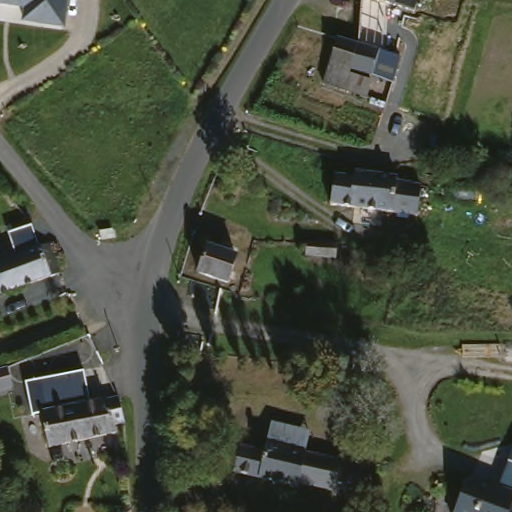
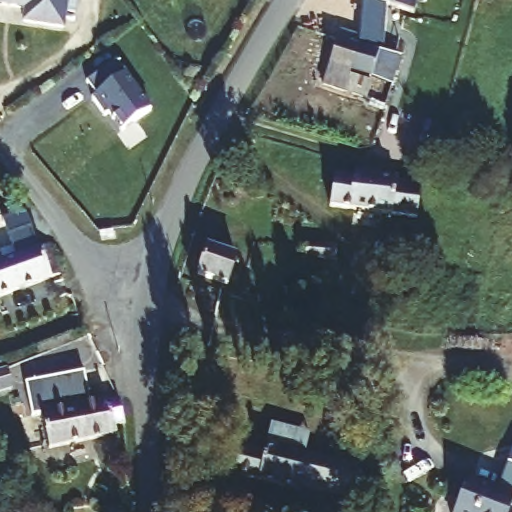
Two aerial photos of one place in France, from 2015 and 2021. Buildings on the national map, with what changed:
unchanged [(22,20),(22,7),(0,5),(0,0),(69,0),(64,27),(22,20)]
unchanged [(392,0),(423,0),(419,9),(392,0)]
unchanged [(395,77),(375,70),(353,61),(351,67),(376,76),(370,92),(326,74),(343,29),(362,36),(384,45),(403,52),(395,77)]
new [(116,62),(148,106),(119,127),(106,109),(102,112),(92,99),(96,96),(87,82),(116,62)]
unchanged [(424,213),(399,210),(335,202),(339,171),(361,175),(363,169),(404,175),(403,179),(427,182),(424,213)]
unchanged [(41,252),(53,247),(65,274),(0,300),(0,260),(14,254),(6,232),(26,224),(38,245),(41,252)]
unchanged [(336,262),(307,261),(308,244),(336,246),(336,262)]
unchanged [(236,281),(206,272),(214,246),(244,254),(236,281)]
unchanged [(15,382),(0,387),(0,366),(9,363),(15,382)]
unchanged [(49,442),(48,407),(41,407),(40,373),(87,372),(88,405),(124,404),(125,431),(114,431),(115,441),(49,442)]
unchanged [(308,480),(307,485),(243,471),(248,442),(272,447),(274,440),(279,419),(320,427),(315,447),(314,453),(308,480)]
unchanged [(314,453),(367,468),(356,496),(307,485),(308,480),(314,453)]
unchanged [(512,509),(512,512),(453,512),(458,488),(468,491),(470,482),(493,487),(499,458),(512,461),(512,492),(508,508),(512,509)]

